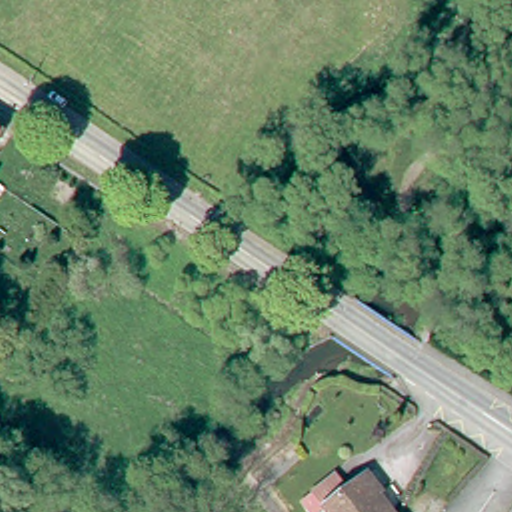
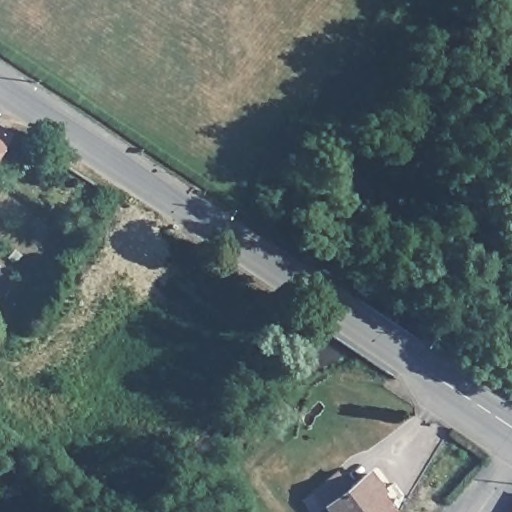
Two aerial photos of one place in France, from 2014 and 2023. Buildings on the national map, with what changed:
unchanged [(9,125),(0,139),(0,119),(9,125)]
unchanged [(350,485),(367,472),(369,471),(383,491),(381,492),(396,512),(330,512),(312,488),(337,469),(350,485)]

